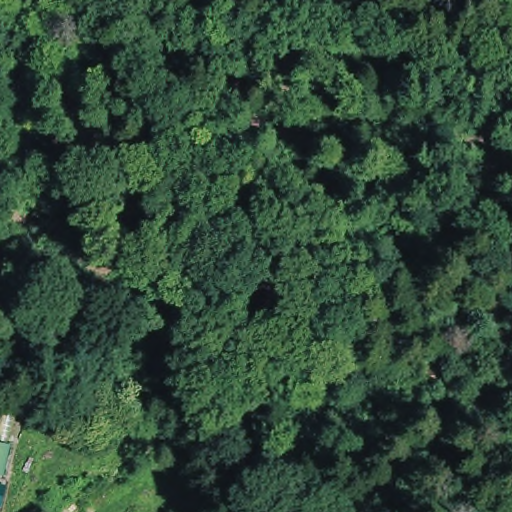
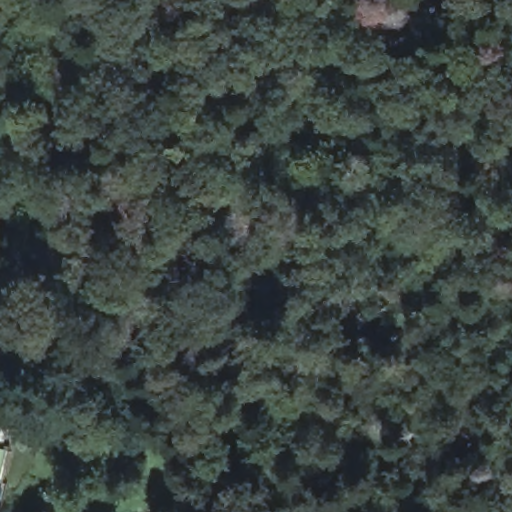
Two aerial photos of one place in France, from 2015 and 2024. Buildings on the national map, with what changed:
unchanged [(0,473),(0,447),(6,448),(0,473)]

